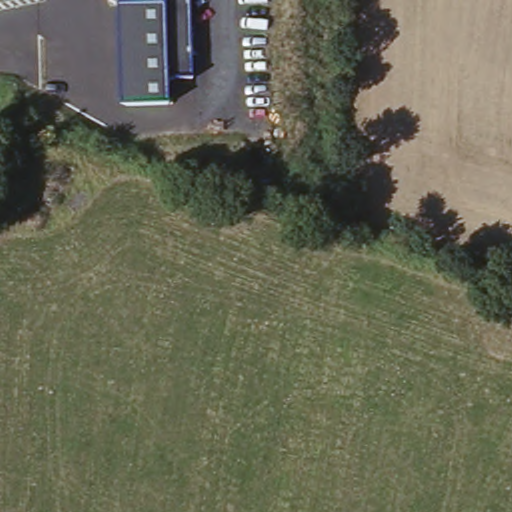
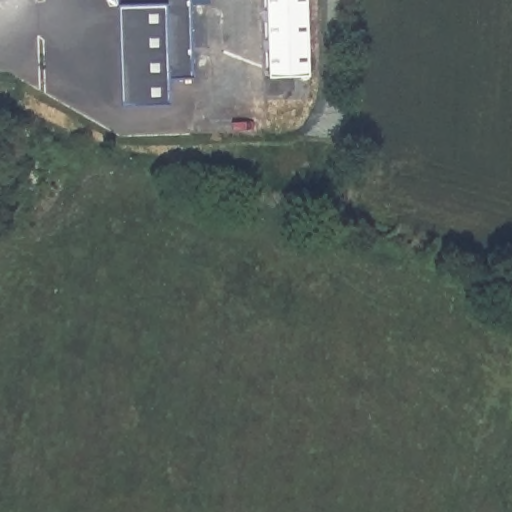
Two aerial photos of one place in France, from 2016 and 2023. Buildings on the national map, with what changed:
unchanged [(115,0),(189,0),(191,77),(166,76),(167,104),(118,104),(119,6),(115,0)]
new [(267,0),(303,0),(306,74),(287,75),(269,75),(267,0)]

